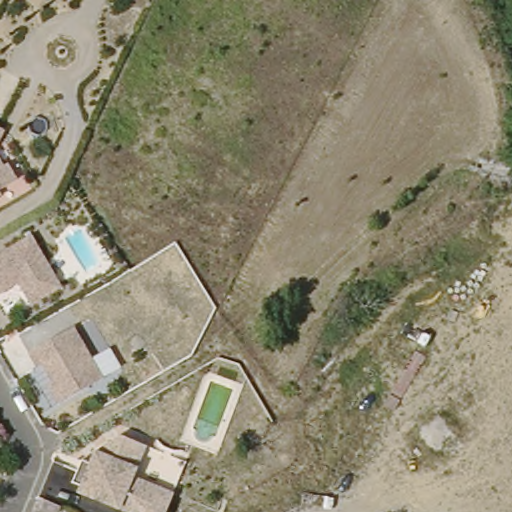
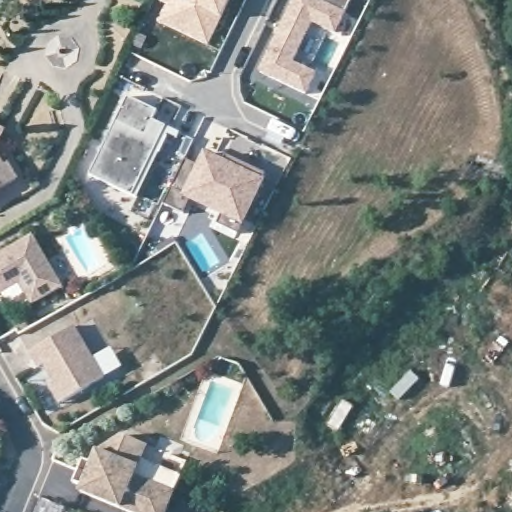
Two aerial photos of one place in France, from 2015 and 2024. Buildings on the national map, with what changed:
new [(208,46),(162,23),(172,0),(185,0),(192,4),(194,0),(231,0),(221,21),(208,46)]
new [(339,24),(344,27),(341,35),(334,32),(311,21),(293,61),(316,71),(306,92),(259,70),(292,0),(322,0),(345,11),(339,24)]
new [(180,141),(171,136),(139,201),(135,199),(91,178),(130,99),(160,114),(156,123),(169,129),(183,136),(180,141)]
unchanged [(3,144),(0,151),(0,130),(8,134),(3,144)]
unchanged [(14,166),(23,183),(0,196),(0,155),(9,169),(14,166)]
new [(188,161),(201,169),(208,156),(224,164),(228,157),(269,177),(239,236),(219,227),(225,216),(193,200),(186,216),(166,207),(188,161)]
unchanged [(0,206),(0,202),(1,206),(0,206)]
unchanged [(14,285),(0,291),(0,253),(28,236),(59,287),(28,306),(14,285)]
unchanged [(50,390),(55,388),(44,369),(38,371),(31,358),(74,332),(105,382),(64,405),(59,408),(50,390)]
unchanged [(119,435),(144,445),(131,476),(172,492),(164,512),(131,512),(78,492),(68,488),(79,460),(89,463),(93,451),(119,435)]

